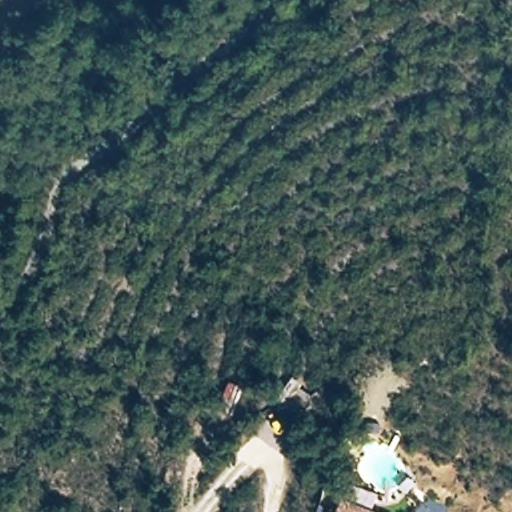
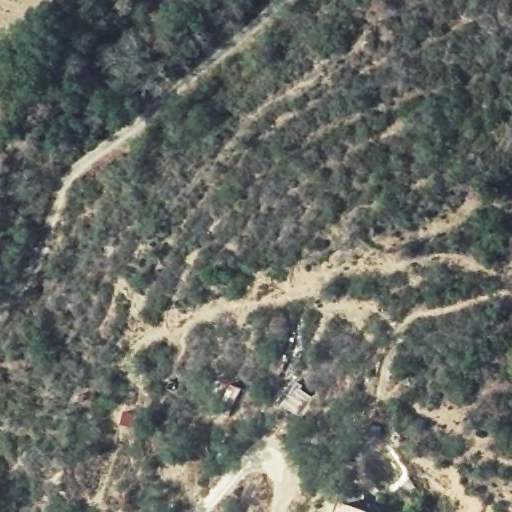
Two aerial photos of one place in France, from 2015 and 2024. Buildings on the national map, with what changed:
unchanged [(337,509),(347,512),(336,512),(337,509)]

